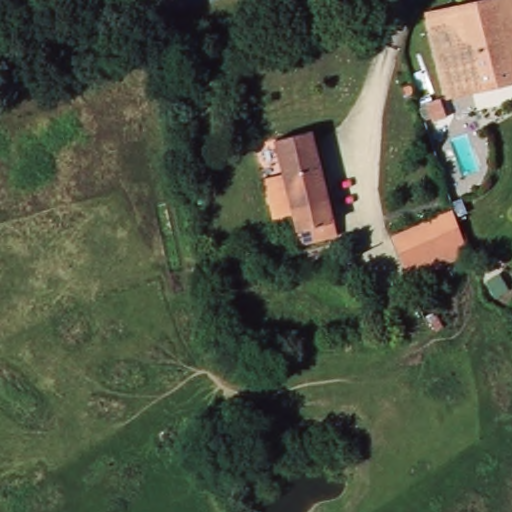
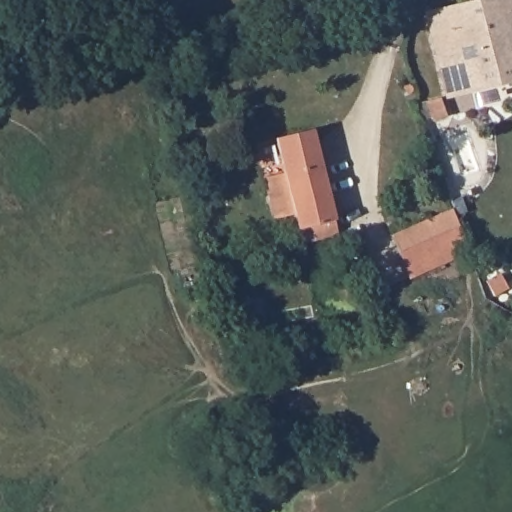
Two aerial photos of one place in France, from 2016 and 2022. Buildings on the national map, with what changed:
unchanged [(512,0),(512,81),(447,97),(426,13),(479,0),(512,0)]
unchanged [(313,129),(335,220),(298,229),(276,138),(313,129)]
unchanged [(429,224),(436,241),(459,231),(469,258),(410,284),(393,240),(429,224)]
unchanged [(431,298),(437,312),(424,317),(419,305),(431,298)]

